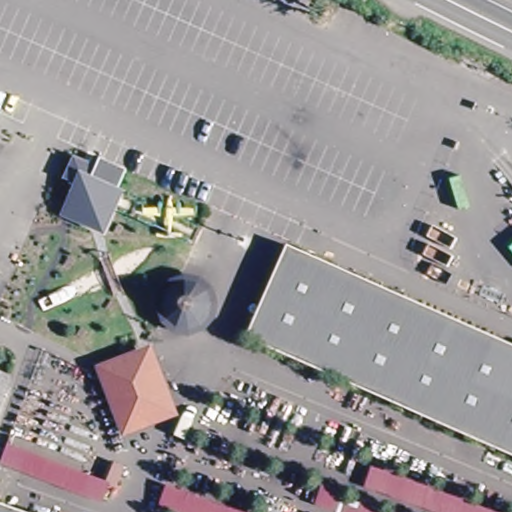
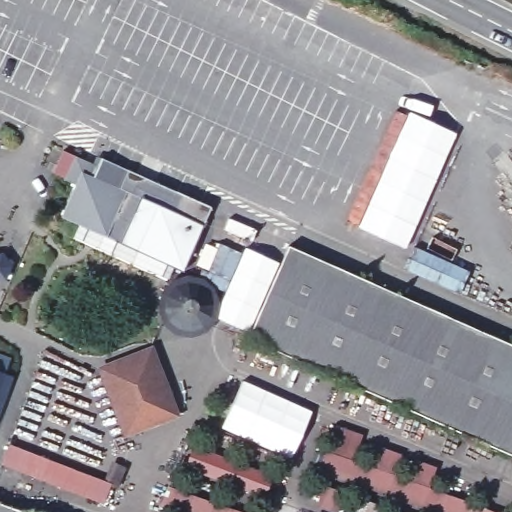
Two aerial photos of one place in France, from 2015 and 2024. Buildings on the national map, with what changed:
new [(0,56),(42,75),(21,123),(0,114),(0,56)]
new [(357,227),(408,115),(409,111),(457,135),(405,249),(357,227)]
new [(96,155),(103,157),(210,206),(203,225),(183,270),(171,265),(168,280),(161,276),(111,254),(73,238),(79,225),(106,238),(125,194),(94,179),(99,165),(91,162),(96,155)]
unchanged [(62,217),(75,187),(64,181),(75,156),(99,165),(94,179),(125,194),(106,238),(62,217)]
unchanged [(244,338),(285,246),(512,347),(512,457),(244,338)]
new [(248,331),(218,318),(245,247),(278,263),(248,331)]
new [(469,271),(459,294),(404,270),(414,247),(469,271)]
demolished [(14,316),(3,312),(15,282),(26,286),(14,316)]
unchanged [(204,308),(202,317),(199,323),(193,328),(185,331),(177,331),(169,330),(164,326),(159,320),(155,313),(155,305),(156,298),(160,291),(165,286),(173,283),(182,282),(189,283),(194,286),(199,292),(204,299),(204,306),(204,308)]
unchanged [(170,409),(172,412),(168,413),(129,428),(108,371),(149,355),(170,409)]
unchanged [(0,369),(4,370),(0,379),(0,369)]
unchanged [(0,405),(0,379),(4,370),(12,373),(0,405)]
new [(242,380),(312,410),(290,458),(220,427),(242,380)]
unchanged [(107,481),(114,462),(124,467),(116,488),(110,485),(104,501),(1,463),(8,445),(107,481)]
new [(203,474),(210,452),(273,476),(264,497),(203,474)]
unchanged [(433,512),(364,486),(372,466),(495,512),(433,512)]
unchanged [(177,512),(159,505),(166,486),(240,512),(177,512)]
unchanged [(337,512),(316,505),(323,486),(393,512),(337,512)]
unchanged [(0,512),(0,498),(38,512),(0,512)]

